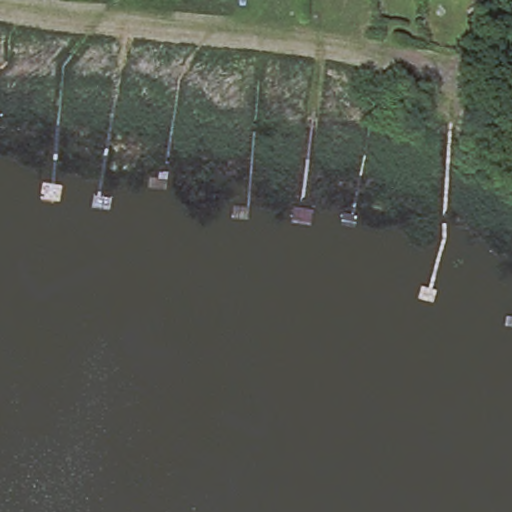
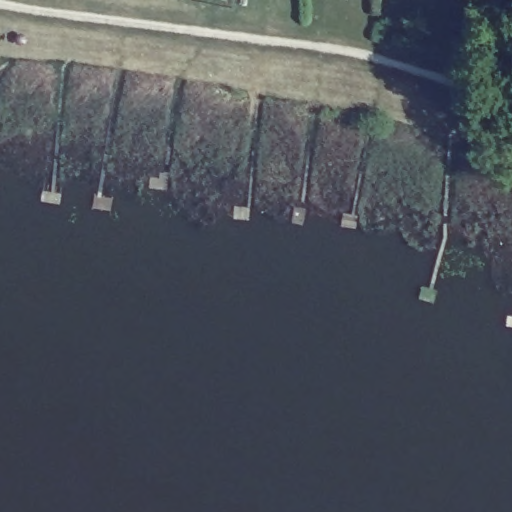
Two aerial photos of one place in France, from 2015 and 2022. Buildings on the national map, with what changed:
unchanged [(512,147),(490,140),(484,104),(512,116),(512,147)]

